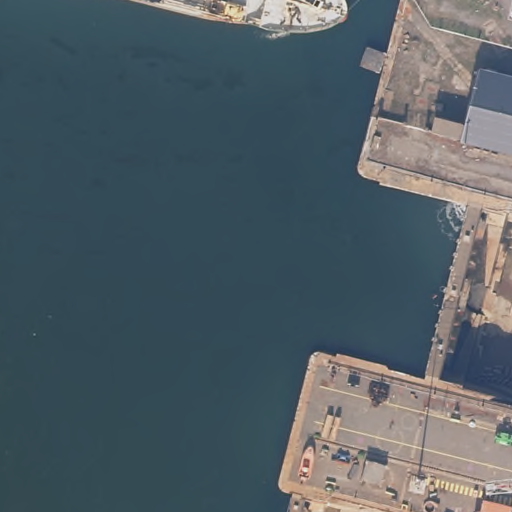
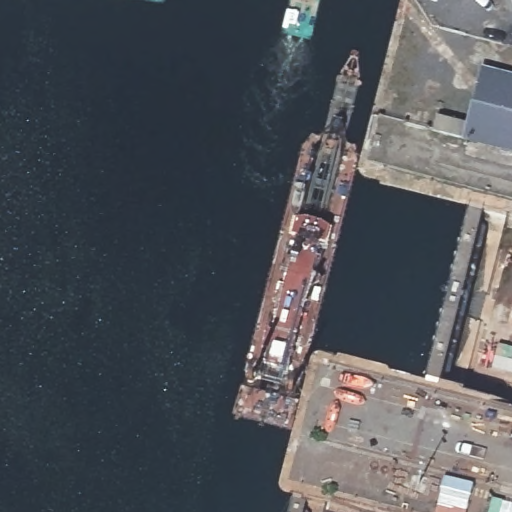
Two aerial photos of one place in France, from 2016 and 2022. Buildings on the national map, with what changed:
unchanged [(440,118),(462,124),(463,123),(476,70),(512,79),(512,153),(459,140),(436,134),(430,132),(433,117),(440,118)]

